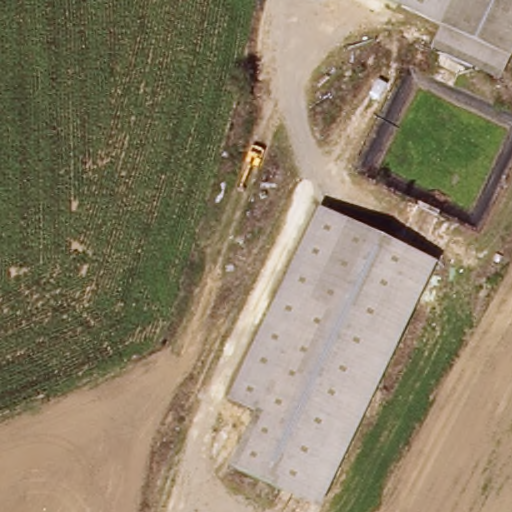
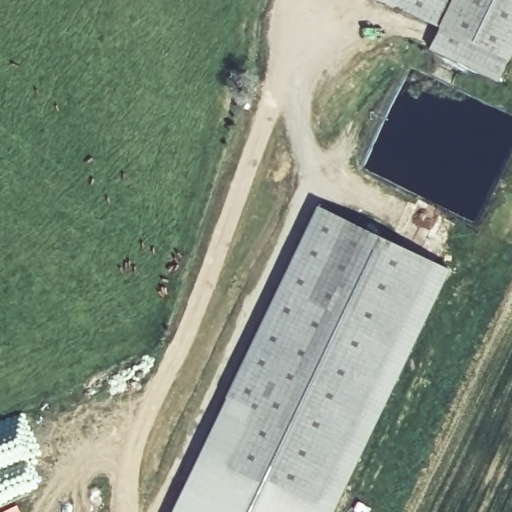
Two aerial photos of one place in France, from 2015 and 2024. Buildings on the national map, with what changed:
unchanged [(457,0),(443,28),(387,0),(457,0)]
unchanged [(512,0),(512,56),(510,59),(443,28),(457,0),(512,0)]
unchanged [(510,59),(498,83),(432,49),(443,28),(510,59)]
unchanged [(227,399),(320,209),(418,256),(326,446),(255,413),(227,399)]
unchanged [(332,512),(325,512),(299,501),(326,446),(418,256),(448,272),(332,512)]
new [(227,399),(255,413),(229,467),(299,501),(325,512),(174,512),(227,399)]
unchanged [(229,467),(255,413),(326,446),(299,501),(229,467)]

